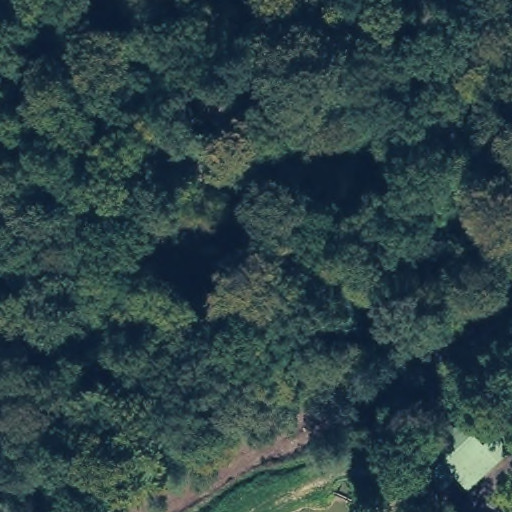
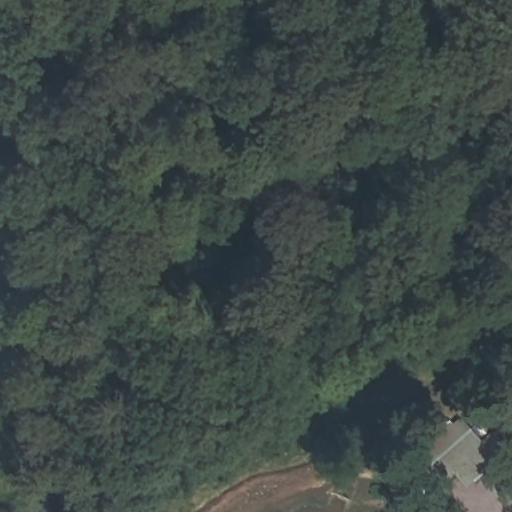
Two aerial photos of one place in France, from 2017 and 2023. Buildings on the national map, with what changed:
unchanged [(512,450),(491,471),(487,469),(467,487),(455,474),(444,484),(429,468),(469,430),(484,444),(497,431),(512,446),(512,450)]
unchanged [(403,433),(423,453),(399,478),(377,457),(403,433)]

